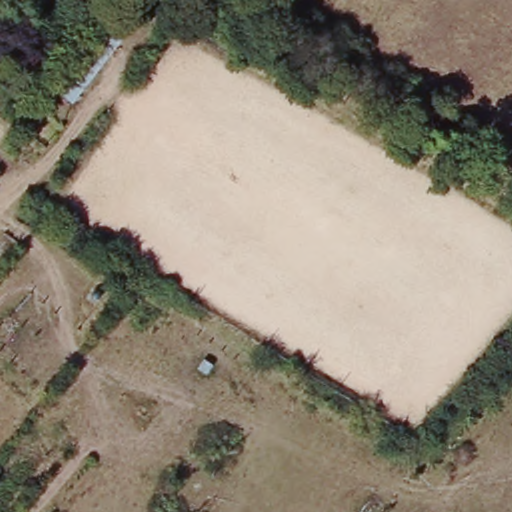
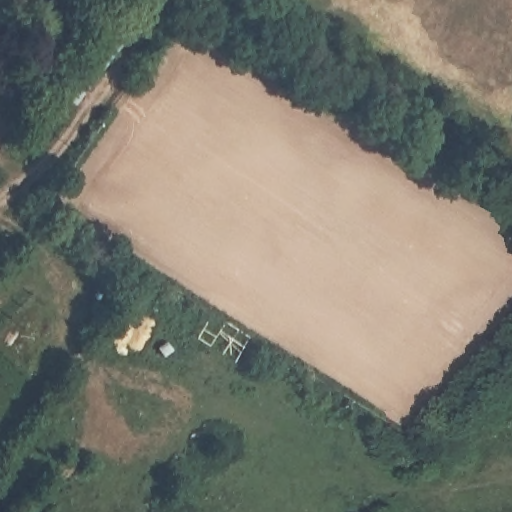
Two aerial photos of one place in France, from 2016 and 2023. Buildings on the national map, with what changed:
unchanged [(144,0),(134,18),(120,7),(111,15),(105,11),(113,0),(144,0)]

